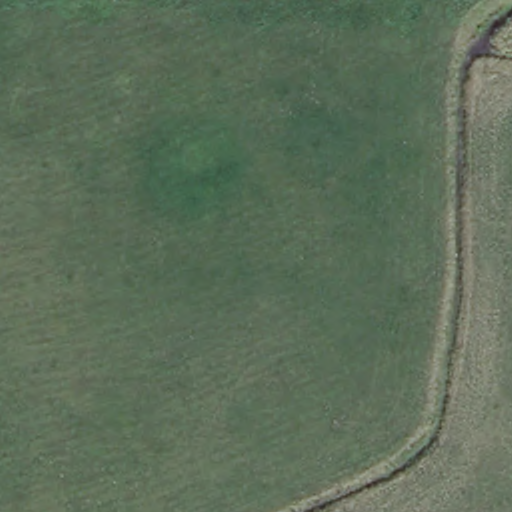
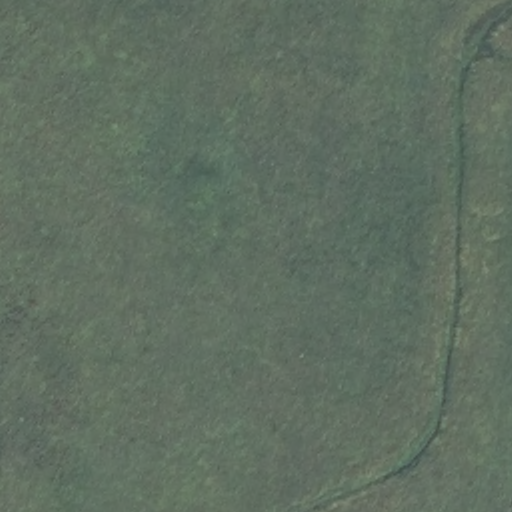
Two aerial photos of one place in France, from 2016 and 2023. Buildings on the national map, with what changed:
[]

